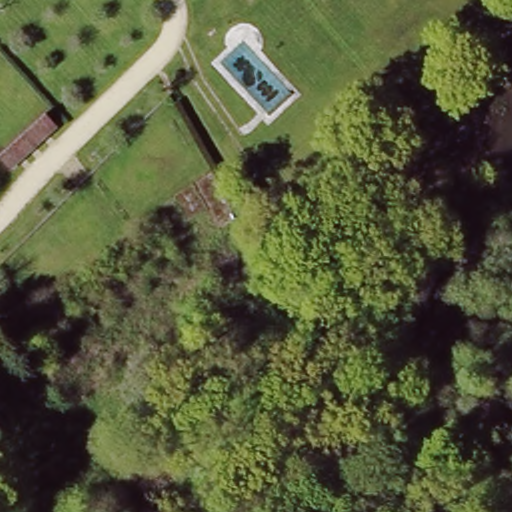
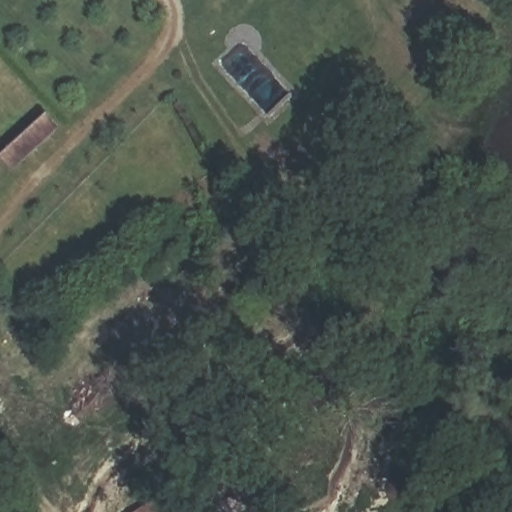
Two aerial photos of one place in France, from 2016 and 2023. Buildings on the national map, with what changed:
unchanged [(0,153),(19,135),(42,114),(52,125),(31,147),(10,169),(0,158),(0,153)]

